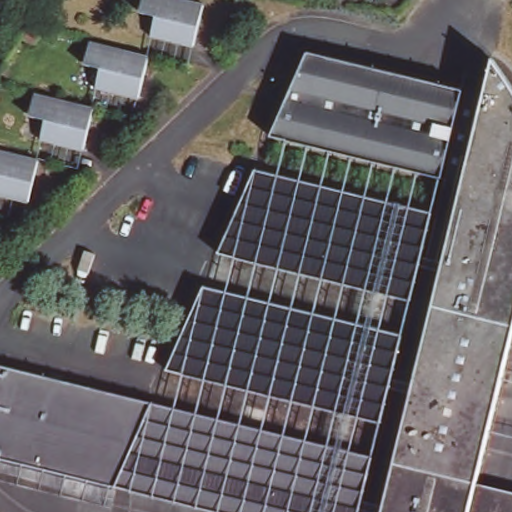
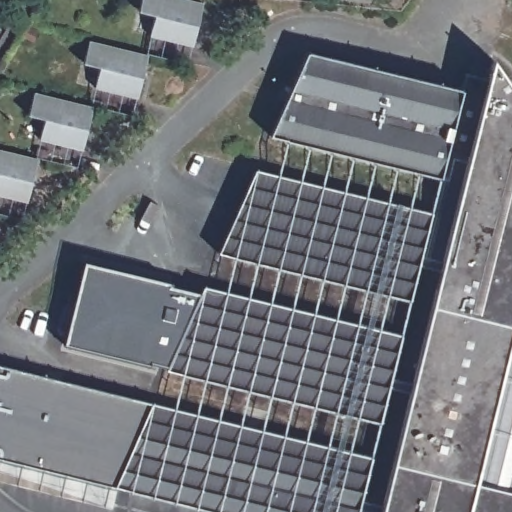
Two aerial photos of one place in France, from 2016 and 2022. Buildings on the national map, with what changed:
unchanged [(192,0),(202,3),(190,45),(149,34),(154,15),(139,11),(142,0),(192,0)]
unchanged [(93,38),(151,53),(139,97),(97,86),(103,66),(87,62),(93,38)]
unchanged [(129,487),(128,492),(69,476),(0,457),(0,363),(123,396),(371,463),(361,501),(381,506),(411,396),(390,391),(380,427),(164,369),(204,285),(404,339),(393,381),(413,387),(443,275),(422,270),(413,306),(219,253),(259,169),(437,217),(425,261),(446,266),(471,173),(476,151),(456,146),(450,168),(446,182),(274,137),(314,52),(347,61),(386,71),(470,93),(458,136),(479,141),(501,61),(503,62),(512,76),(512,359),(476,490),(512,500),(512,512),(220,512),(129,487)]
unchanged [(96,105),(84,149),(41,137),(47,118),(30,113),(36,89),(96,105)]
unchanged [(27,205),(0,198),(0,151),(4,152),(39,161),(33,181),(27,205)]
new [(166,366),(149,361),(149,364),(64,344),(83,262),(169,283),(169,286),(200,294),(166,366)]
new [(512,359),(512,500),(476,490),(512,359)]

